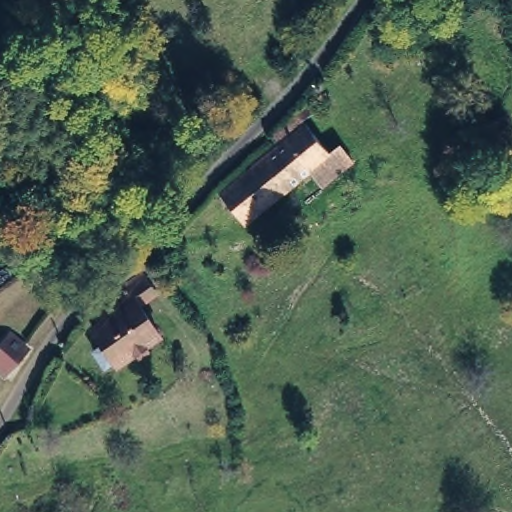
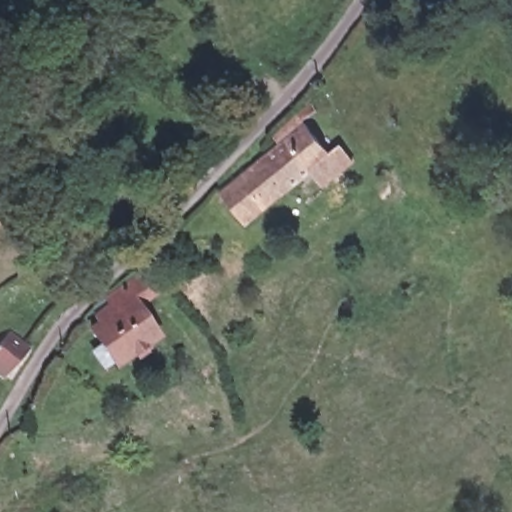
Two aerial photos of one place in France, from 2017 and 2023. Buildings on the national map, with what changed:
unchanged [(327,139),(342,128),(366,144),(335,173),(311,158),(241,220),(210,195),(274,136),(266,122),(290,99),(327,139)]
unchanged [(148,290),(136,303),(158,321),(116,363),(102,359),(95,365),(80,357),(90,348),(80,339),(94,325),(86,319),(132,279),(148,290)]
unchanged [(5,377),(0,372),(0,340),(10,328),(29,347),(5,377)]

